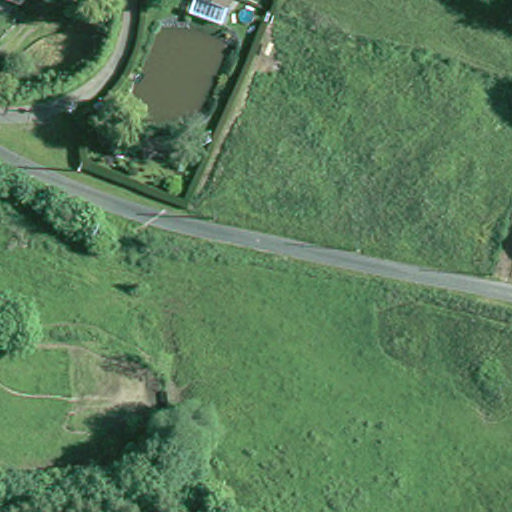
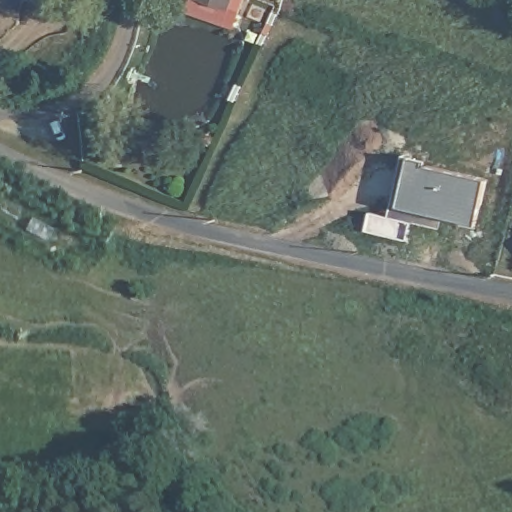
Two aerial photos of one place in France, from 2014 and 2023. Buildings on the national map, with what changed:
unchanged [(4,0),(21,0),(20,4),(4,0)]
unchanged [(229,11),(204,0),(235,0),(233,4),(229,11)]
unchanged [(132,149),(132,135),(161,134),(161,149),(132,149)]
new [(488,180),(475,226),(396,206),(410,160),(488,180)]

